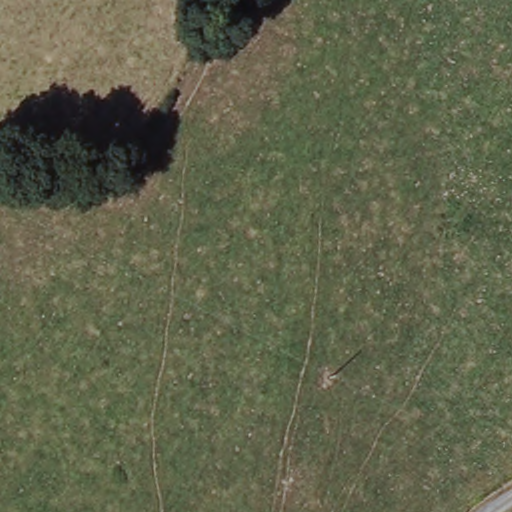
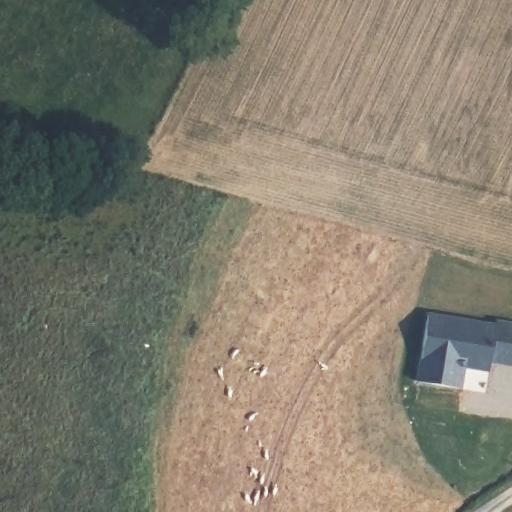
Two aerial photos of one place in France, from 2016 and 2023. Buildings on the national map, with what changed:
new [(419,380),(430,314),(497,325),(498,320),(512,323),(512,364),(492,360),(492,363),(490,370),(466,365),(462,388),(457,387),(419,380)]

